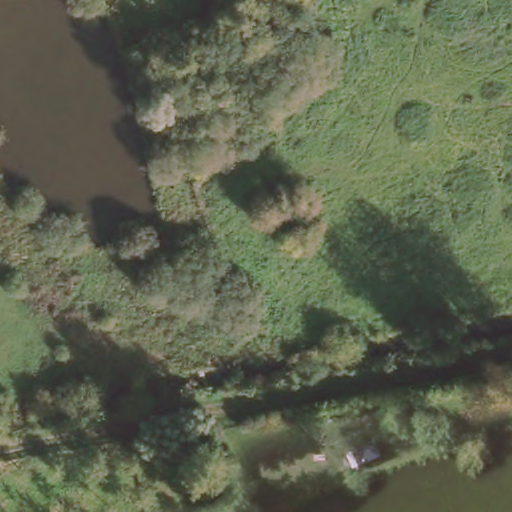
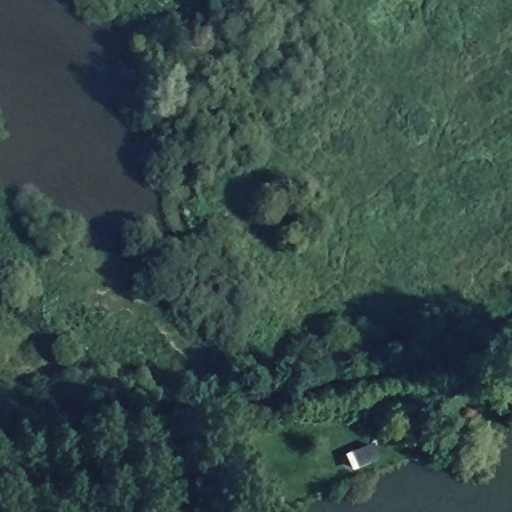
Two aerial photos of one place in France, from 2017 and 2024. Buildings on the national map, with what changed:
unchanged [(370,445),(377,458),(352,468),(346,456),(370,445)]

